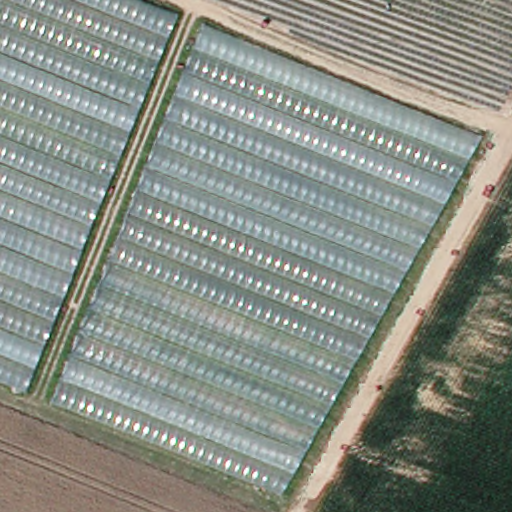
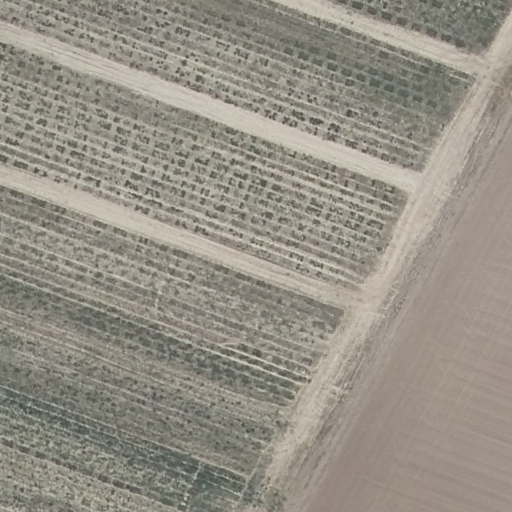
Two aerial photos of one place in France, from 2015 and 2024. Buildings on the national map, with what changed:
demolished [(0,374),(0,0),(158,0),(174,7),(27,385),(0,374)]
demolished [(478,131),(280,487),(50,395),(201,19),(478,131)]

